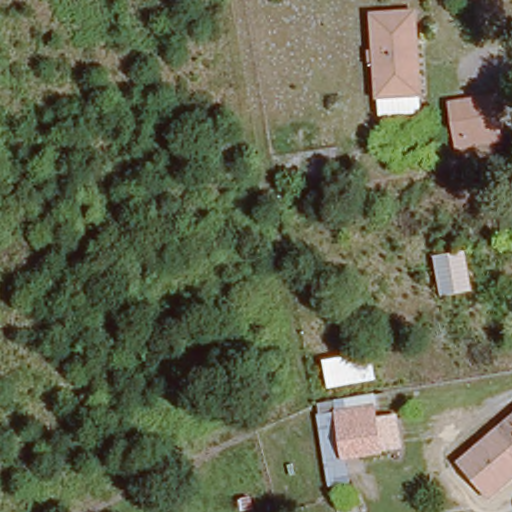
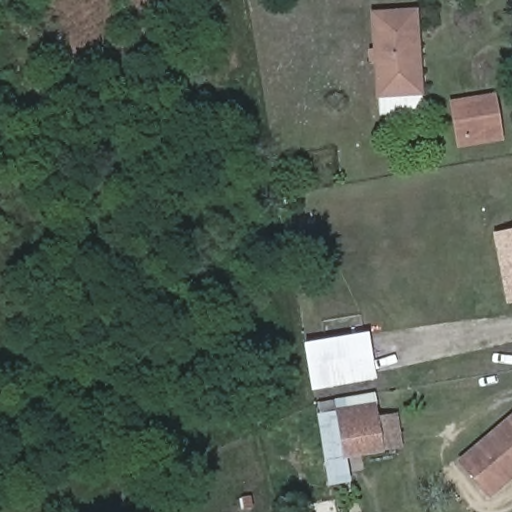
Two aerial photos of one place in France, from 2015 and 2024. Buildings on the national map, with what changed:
unchanged [(381,94),(378,68),(374,9),(415,7),(423,82),(423,90),(381,94)]
unchanged [(453,144),(452,130),(449,103),(490,98),(494,132),(495,138),(453,144)]
new [(506,305),(493,235),(512,231),(512,304),(506,305)]
demolished [(439,295),(435,259),(455,256),(459,292),(439,295)]
new [(304,344),(368,334),(376,380),(313,391),(304,344)]
demolished [(371,349),(376,379),(327,388),(321,357),(371,349)]
unchanged [(379,418),(400,414),(405,452),(348,459),(353,487),(330,489),(320,412),(319,401),(372,391),(377,403),(379,418)]
unchanged [(493,494),(464,459),(512,419),(512,477),(493,494)]

